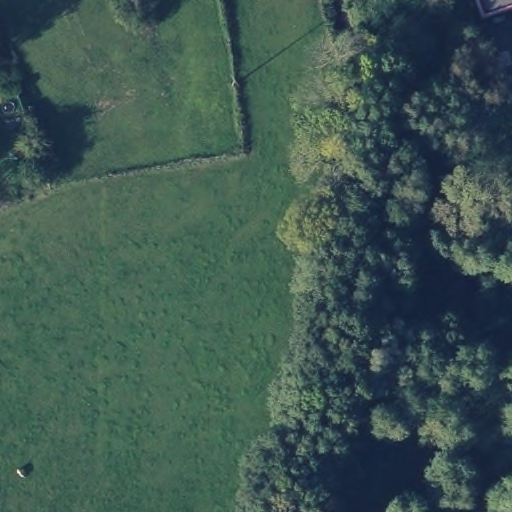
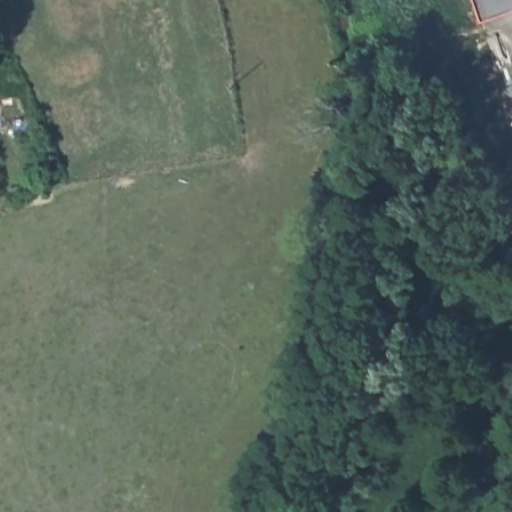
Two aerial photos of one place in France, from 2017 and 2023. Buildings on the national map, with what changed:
unchanged [(479,0),(512,0),(512,13),(487,22),(479,0)]

